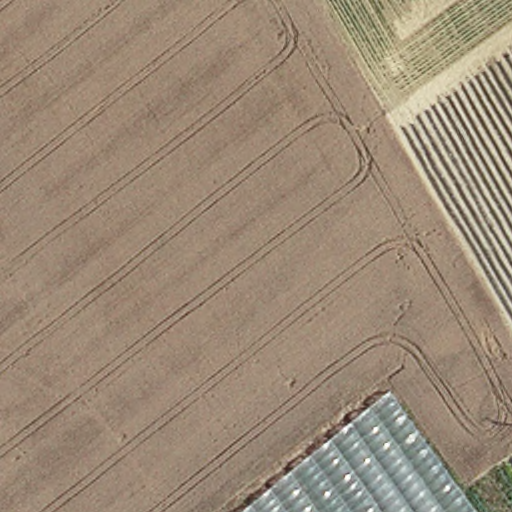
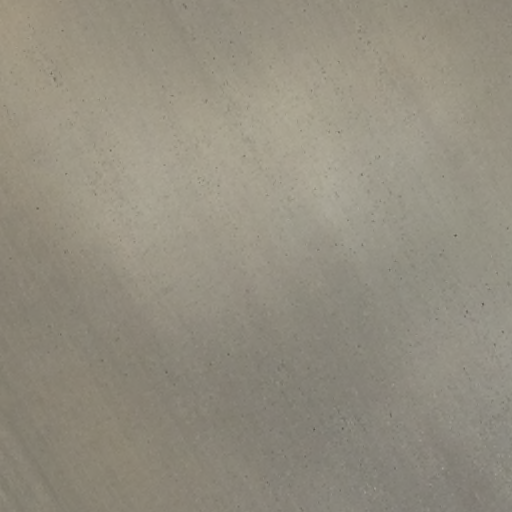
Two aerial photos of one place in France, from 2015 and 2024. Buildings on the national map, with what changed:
new [(390,392),(477,512),(242,512),(390,392)]

